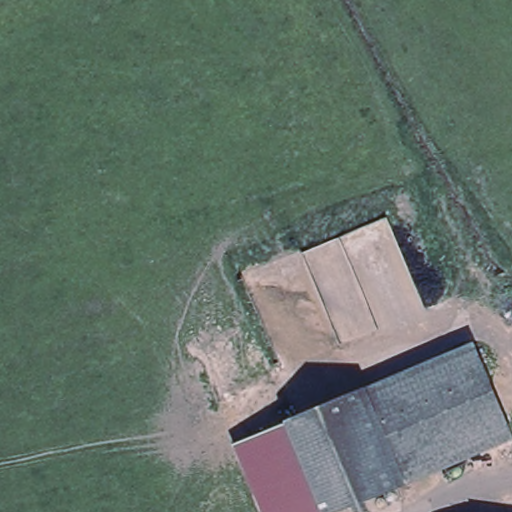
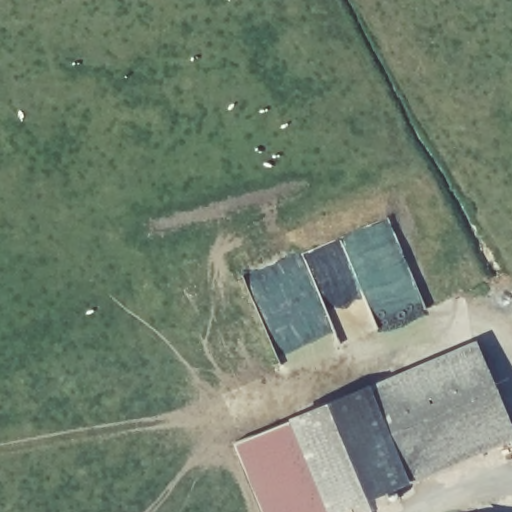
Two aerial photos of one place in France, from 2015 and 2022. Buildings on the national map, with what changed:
unchanged [(473,348),(495,403),(511,443),(440,471),(393,489),(356,394),(473,348)]
unchanged [(268,512),(240,441),(356,394),(393,489),(333,512),(268,512)]

